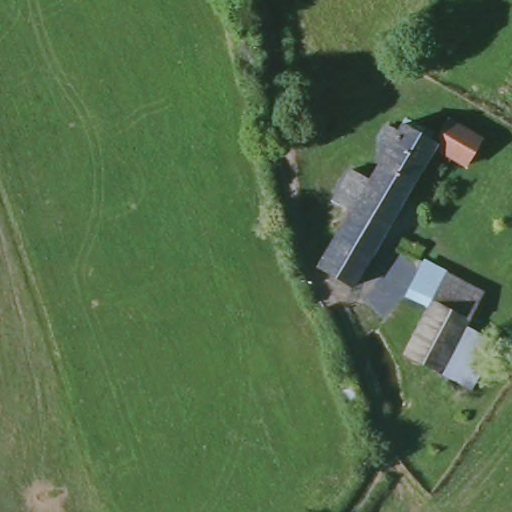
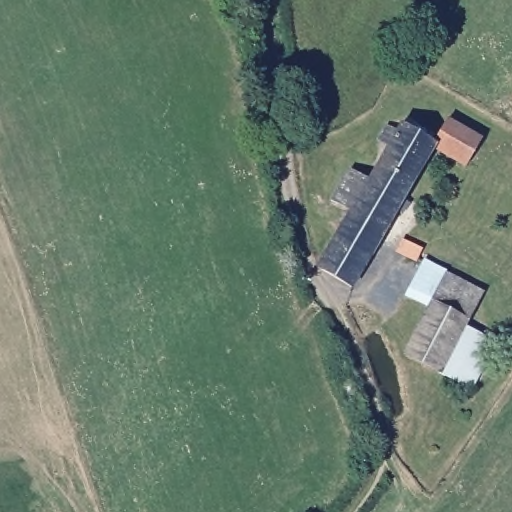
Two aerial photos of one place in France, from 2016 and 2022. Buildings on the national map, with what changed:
unchanged [(431,144),(429,143),(442,121),(476,141),(461,168),(429,149),(431,144)]
unchanged [(347,291),(314,270),(344,217),(328,207),(345,175),(364,185),(386,146),(374,139),(381,128),(393,134),(398,125),(429,143),(431,144),(429,149),(347,291)]
unchanged [(481,290),(466,319),(431,300),(413,290),(428,261),(481,290)]
unchanged [(466,319),(438,372),(403,352),(431,300),(466,319)]

